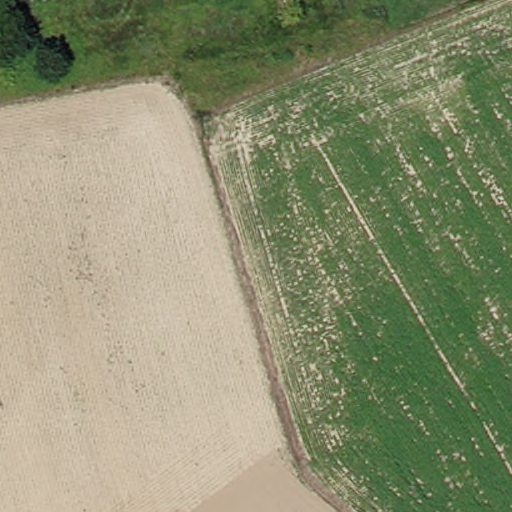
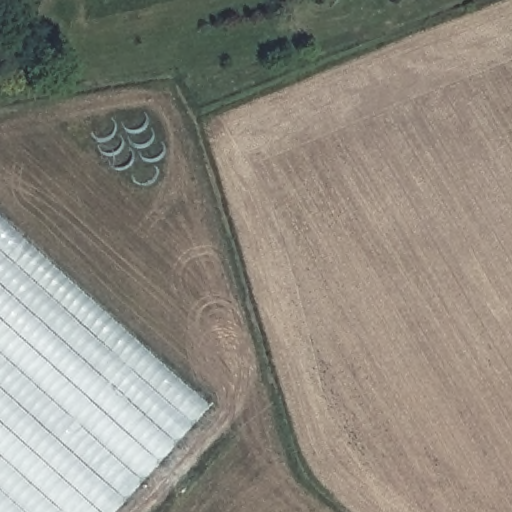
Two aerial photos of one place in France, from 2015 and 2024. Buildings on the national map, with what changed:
new [(115,512),(0,512),(0,214),(209,405),(115,512)]

